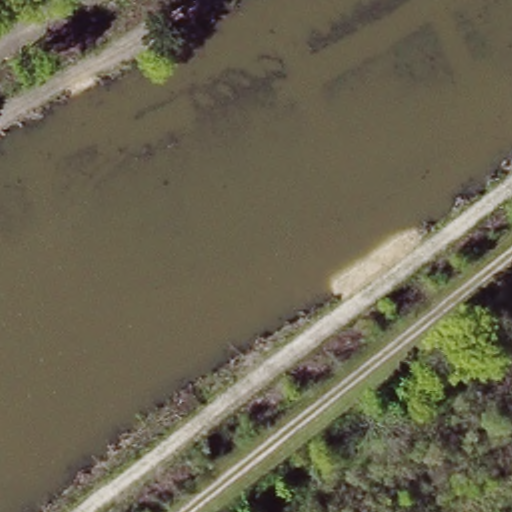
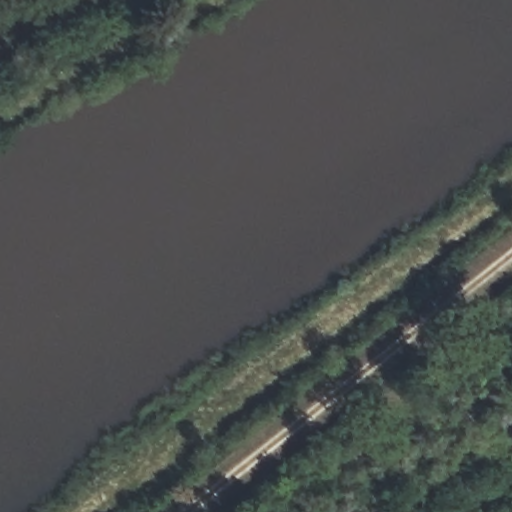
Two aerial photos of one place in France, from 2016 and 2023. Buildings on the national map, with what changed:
[]

